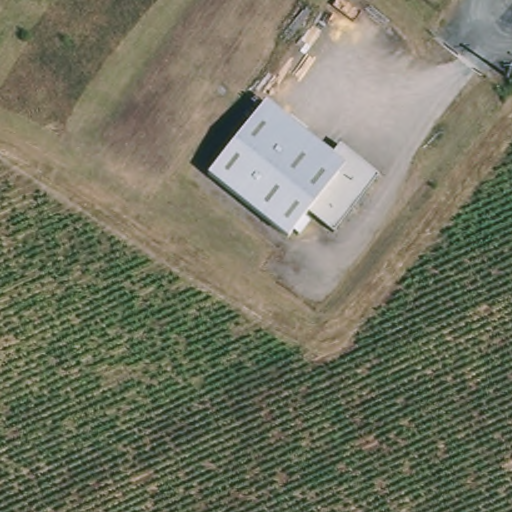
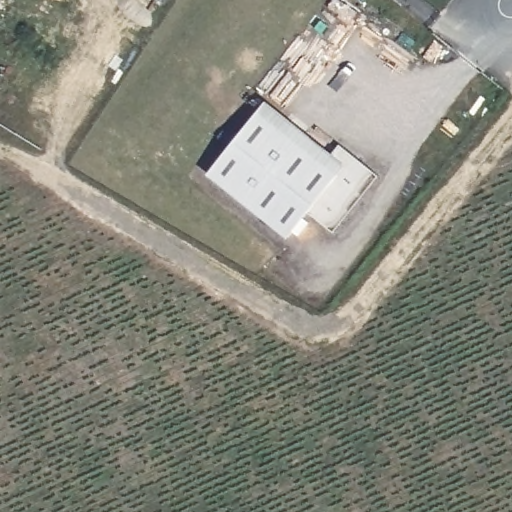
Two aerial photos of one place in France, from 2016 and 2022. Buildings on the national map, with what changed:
unchanged [(329,155),(337,144),(372,173),(327,231),(302,216),(285,239),(205,173),(264,102),(329,155)]

